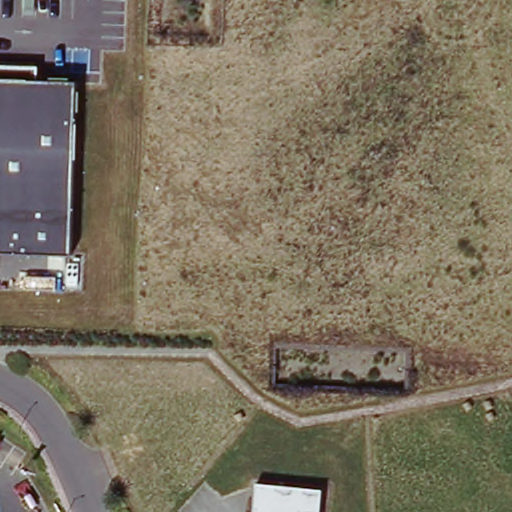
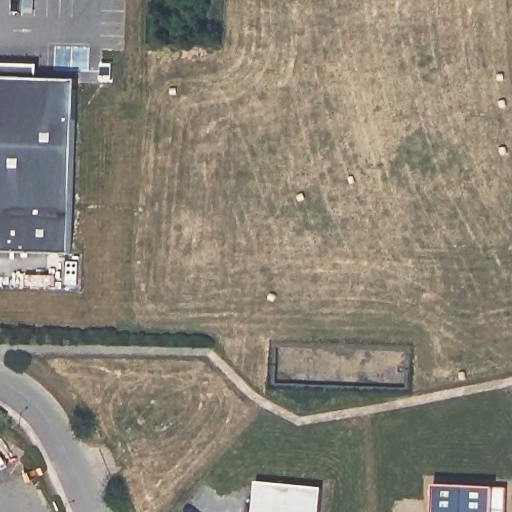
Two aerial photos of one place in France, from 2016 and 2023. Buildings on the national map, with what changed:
unchanged [(39,81),(78,82),(70,254),(0,251),(0,65),(40,65),(39,81)]
unchanged [(323,489),(320,512),(252,512),(255,482),(323,489)]
new [(495,488),(493,512),(434,512),(435,487),(495,488)]

